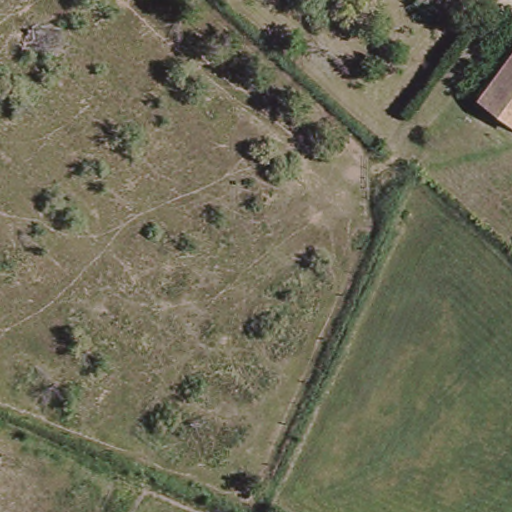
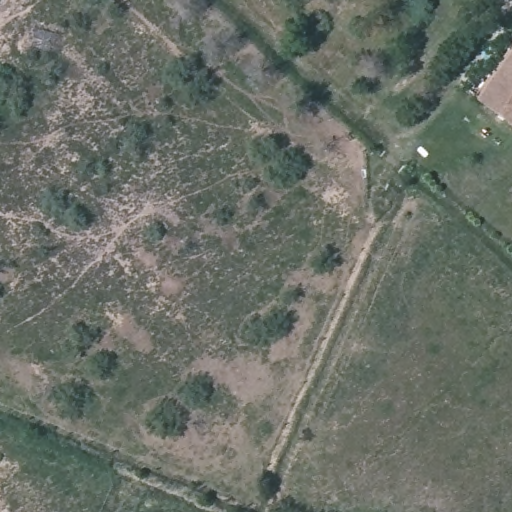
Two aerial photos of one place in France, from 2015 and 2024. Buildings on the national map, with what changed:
unchanged [(512,64),(512,116),(487,97),(512,64)]

